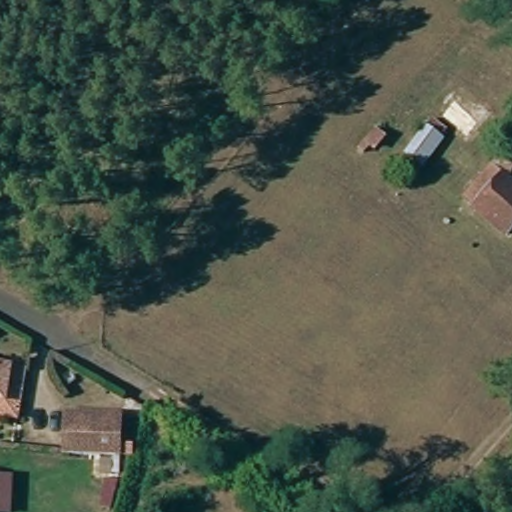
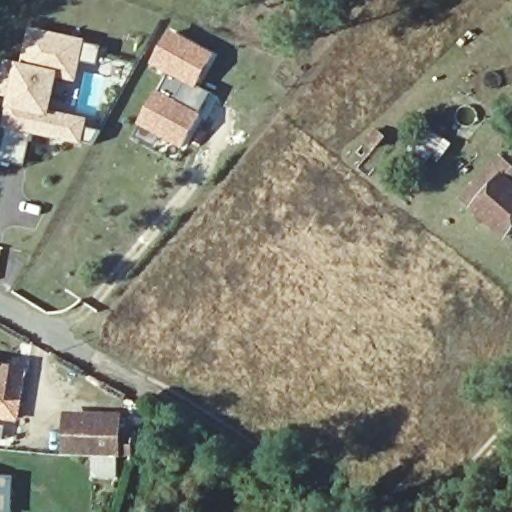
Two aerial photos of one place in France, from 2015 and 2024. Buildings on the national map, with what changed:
new [(19,63),(24,64),(32,28),(88,39),(87,44),(102,48),(100,65),(82,61),(79,82),(61,78),(54,111),(90,119),(88,130),(100,132),(93,143),(86,143),(85,145),(32,135),(27,165),(2,160),(8,131),(4,129),(11,98),(0,96),(0,89),(7,61),(19,63)]
new [(216,55),(200,86),(212,92),(202,113),(205,115),(186,151),(162,137),(156,148),(137,136),(142,128),(139,124),(159,90),(161,91),(170,75),(152,65),(172,30),(216,55)]
unchanged [(512,228),(503,237),(464,199),(497,162),(512,177),(512,228)]
unchanged [(6,370),(1,402),(0,402),(0,369),(6,370)]
unchanged [(0,417),(0,402),(1,402),(6,370),(19,373),(12,419),(0,417)]
unchanged [(117,419),(119,456),(75,457),(72,457),(72,420),(81,420),(117,419)]

